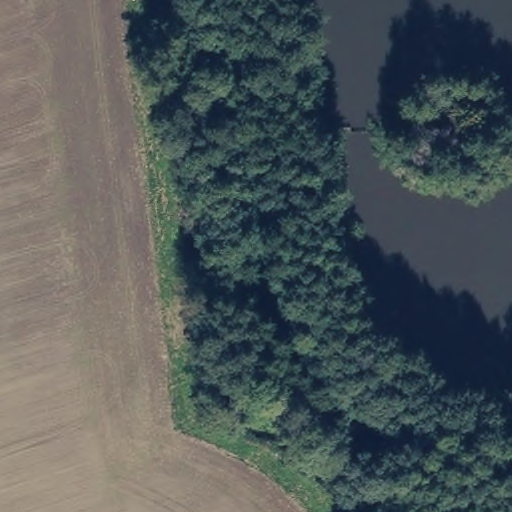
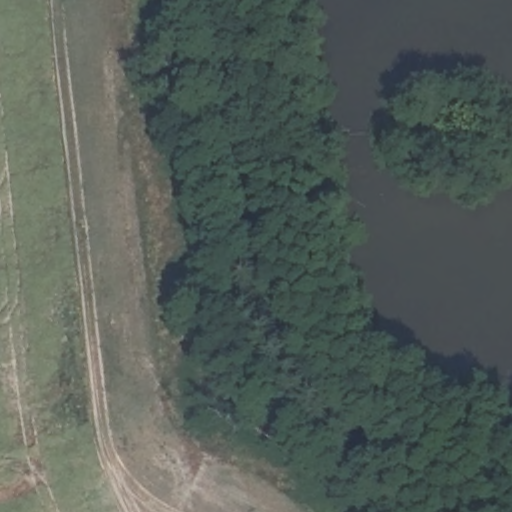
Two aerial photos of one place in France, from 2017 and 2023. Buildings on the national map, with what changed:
[]

